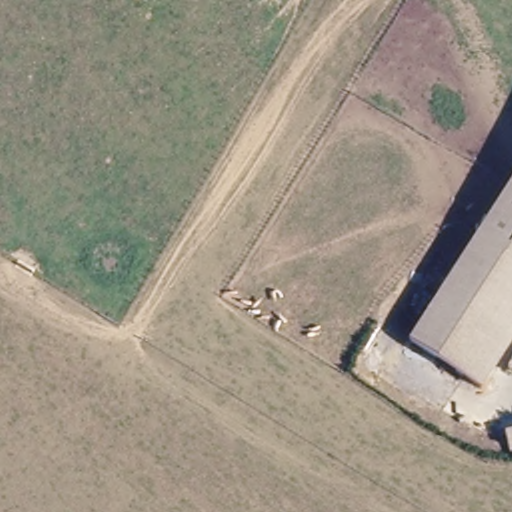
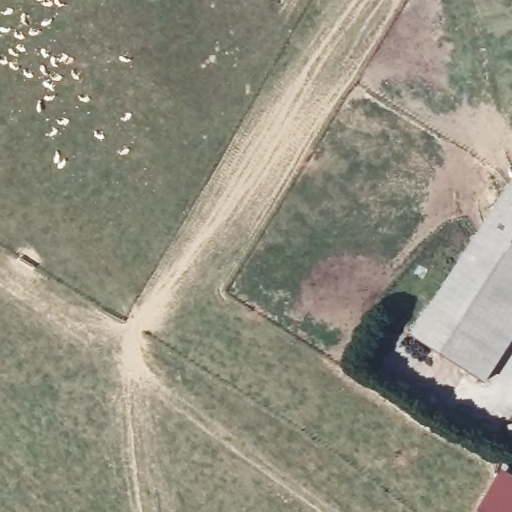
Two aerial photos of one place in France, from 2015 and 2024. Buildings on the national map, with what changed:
unchanged [(415,342),(512,189),(512,311),(470,377),(415,342)]
unchanged [(512,349),(487,388),(470,377),(512,311),(512,349)]
new [(512,478),(512,512),(474,512),(498,470),(512,478)]

